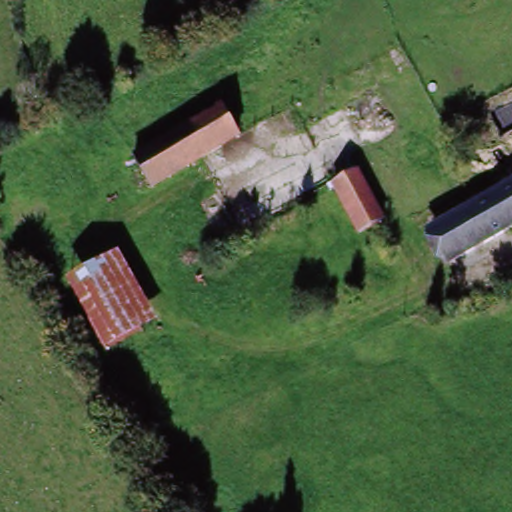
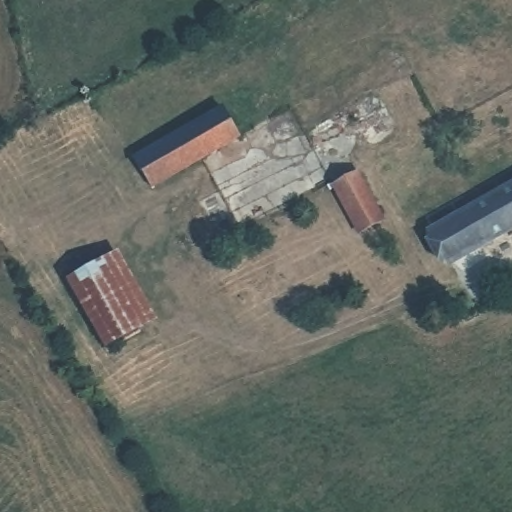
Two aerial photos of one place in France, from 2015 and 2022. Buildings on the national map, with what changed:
unchanged [(146,186),(131,160),(221,110),(237,138),(146,186)]
unchanged [(385,225),(360,239),(335,193),(358,179),(385,225)]
unchanged [(422,235),(512,186),(512,232),(442,270),(422,235)]
unchanged [(104,353),(67,284),(99,267),(117,257),(155,326),(140,334),(104,353)]

